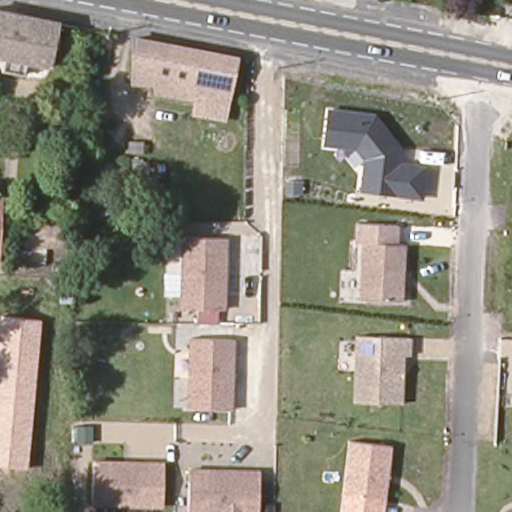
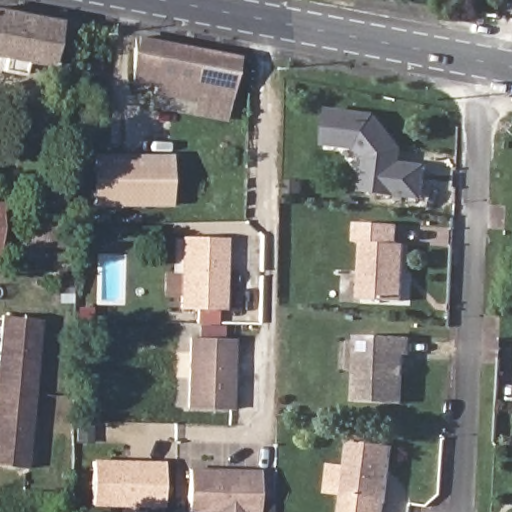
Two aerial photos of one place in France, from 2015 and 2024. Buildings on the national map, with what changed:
unchanged [(26,56),(23,70),(3,65),(5,52),(0,51),(0,9),(58,20),(53,61),(26,56)]
unchanged [(234,56),(229,104),(190,98),(189,109),(156,105),(155,82),(134,80),(134,36),(234,56)]
unchanged [(69,104),(69,112),(58,111),(59,102),(69,104)]
unchanged [(424,200),(361,192),(363,160),(354,149),(324,146),(327,108),(375,112),(402,149),(401,162),(426,164),(424,200)]
new [(94,208),(93,154),(172,154),(172,207),(94,208)]
unchanged [(0,200),(7,200),(7,214),(5,260),(0,260),(0,200)]
unchanged [(220,206),(219,217),(211,217),(211,206),(220,206)]
unchanged [(354,244),(355,223),(399,225),(398,245),(365,244),(354,244)]
unchanged [(70,226),(70,246),(31,245),(31,225),(70,226)]
unchanged [(229,238),(229,309),(187,308),(187,238),(229,238)]
unchanged [(403,303),(363,301),(365,244),(405,246),(403,303)]
unchanged [(55,282),(76,283),(77,293),(55,292),(55,282)]
unchanged [(0,466),(0,315),(41,319),(27,468),(0,466)]
unchanged [(237,339),(237,410),(194,409),(194,339),(237,339)]
unchanged [(412,340),(411,358),(405,358),(404,407),(358,405),(359,339),(412,340)]
unchanged [(392,447),(385,500),(342,494),(349,443),(392,447)]
unchanged [(169,465),(169,507),(97,507),(98,464),(169,465)]
unchanged [(264,472),(264,512),(193,512),(194,471),(264,472)]
unchanged [(339,512),(342,494),(385,500),(384,512),(339,512)]

